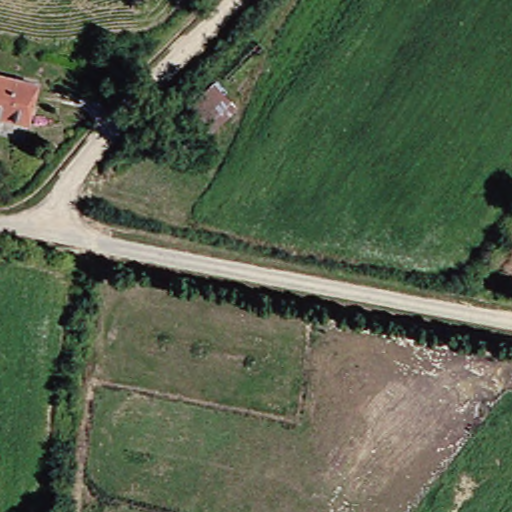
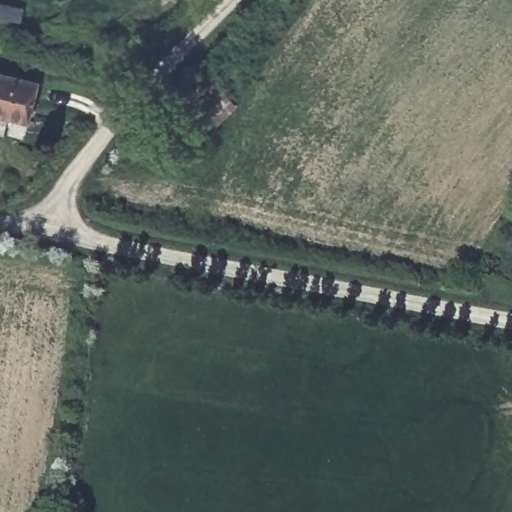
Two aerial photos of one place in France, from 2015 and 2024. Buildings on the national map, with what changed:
new [(26,5),(23,24),(0,20),(0,1),(26,5)]
unchanged [(44,86),(33,125),(0,117),(0,75),(44,86)]

